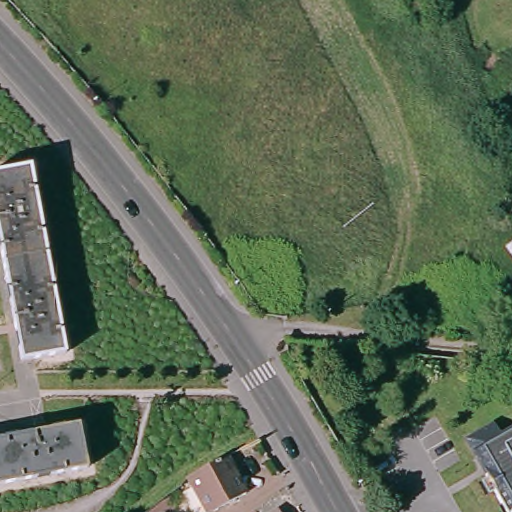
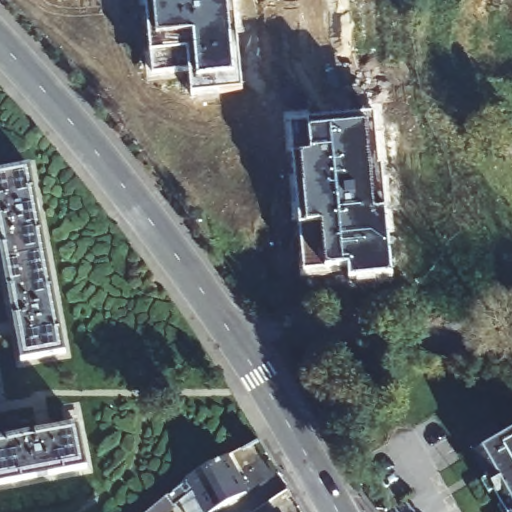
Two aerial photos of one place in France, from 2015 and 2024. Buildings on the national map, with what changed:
new [(192,95),(189,72),(153,76),(152,52),(147,0),(232,0),(242,90),(192,95)]
new [(350,280),(349,268),(325,270),(303,272),(300,224),(290,126),(309,124),(372,118),(391,275),(350,280)]
unchanged [(64,349),(22,357),(0,245),(0,168),(27,164),(64,349)]
unchanged [(0,480),(0,435),(79,419),(87,462),(0,480)]
unchanged [(505,438),(512,433),(512,512),(505,512),(485,478),(491,475),(471,440),(497,424),(505,438)]
unchanged [(245,489),(207,511),(187,473),(211,460),(225,453),(245,489)]
unchanged [(170,497),(177,507),(171,512),(151,512),(162,503),(170,497)]

